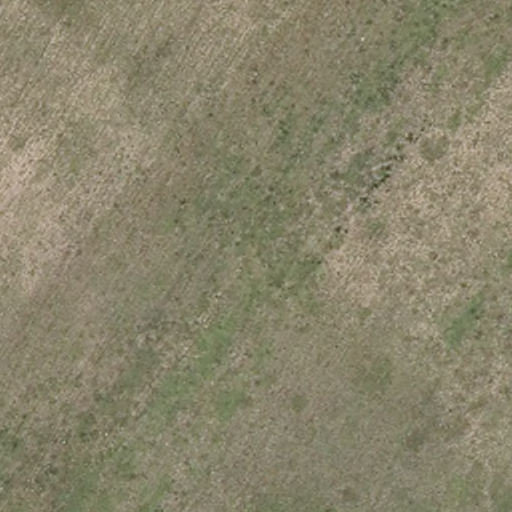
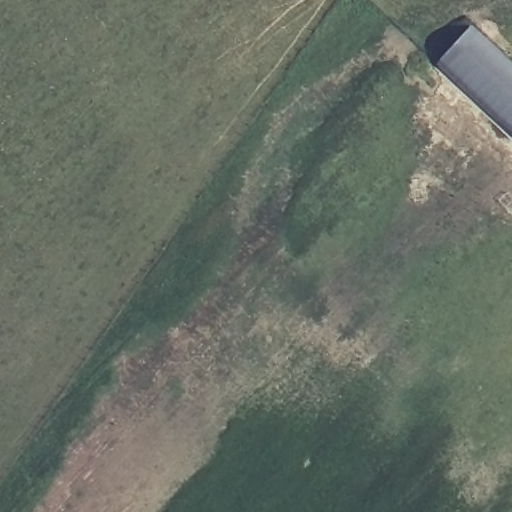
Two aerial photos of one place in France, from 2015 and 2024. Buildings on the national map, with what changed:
new [(471,24),(503,52),(512,61),(512,142),(472,104),(433,65),(471,24)]

